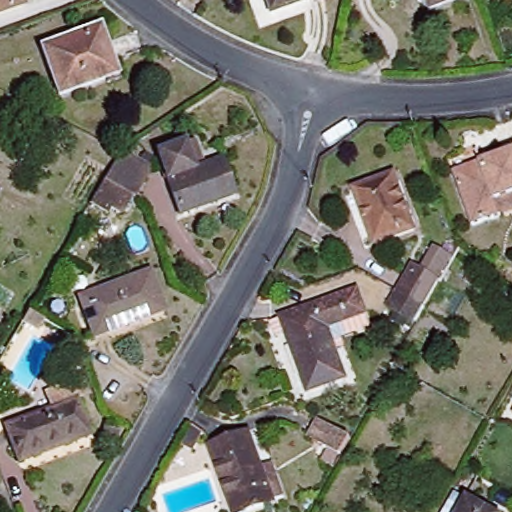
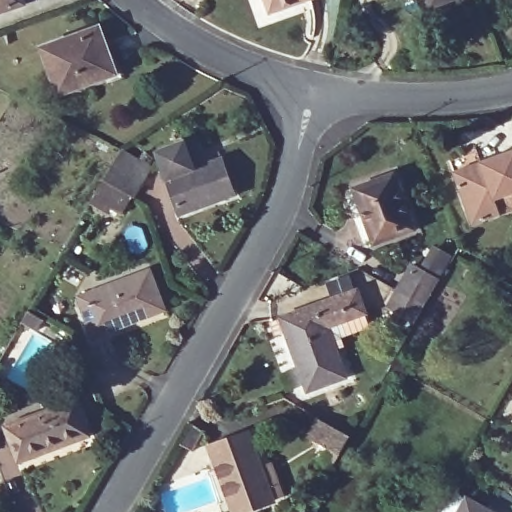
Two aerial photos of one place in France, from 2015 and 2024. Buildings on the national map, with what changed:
unchanged [(0,10),(0,0),(24,0),(24,1),(0,10)]
unchanged [(277,11),(273,0),(308,0),(277,11)]
unchanged [(432,9),(429,0),(457,0),(432,9)]
unchanged [(61,97),(43,50),(101,30),(117,76),(61,97)]
unchanged [(183,215),(160,155),(187,145),(197,170),(222,163),(233,196),(183,215)]
unchanged [(94,199),(105,180),(119,152),(127,147),(152,160),(135,196),(126,214),(94,199)]
unchanged [(495,222),(473,230),(454,177),(512,156),(512,199),(500,202),(505,219),(495,222)]
unchanged [(408,232),(369,244),(348,189),(391,175),(408,232)]
unchanged [(385,309),(394,293),(404,277),(412,263),(420,267),(432,246),(451,256),(431,293),(422,309),(413,324),(385,309)]
unchanged [(100,336),(85,300),(151,275),(166,313),(100,336)]
unchanged [(362,315),(329,328),(346,376),(309,391),(282,318),(352,291),(362,315)]
unchanged [(37,340),(23,332),(31,318),(47,328),(37,340)]
unchanged [(20,459),(9,425),(76,401),(89,437),(20,459)]
unchanged [(347,436),(336,455),(306,436),(317,417),(347,436)]
unchanged [(285,495),(241,512),(230,512),(207,448),(246,432),(261,468),(271,464),(278,481),(285,495)]
unchanged [(491,512),(462,512),(470,500),(491,512)]

